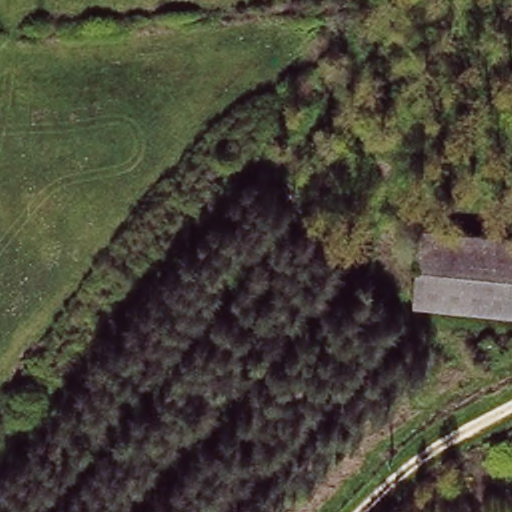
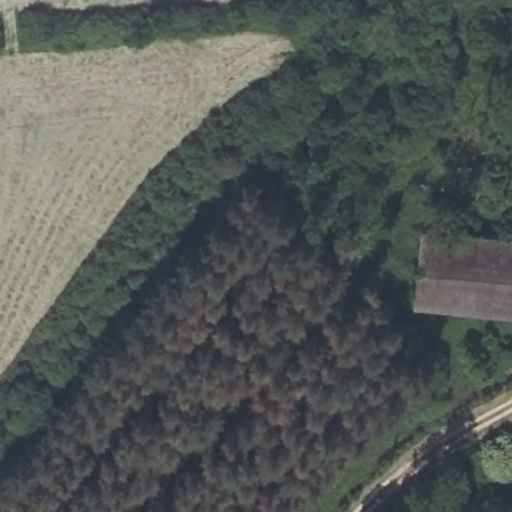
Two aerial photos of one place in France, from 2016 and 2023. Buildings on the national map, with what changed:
unchanged [(512,242),(512,315),(410,300),(421,229),(512,242)]

